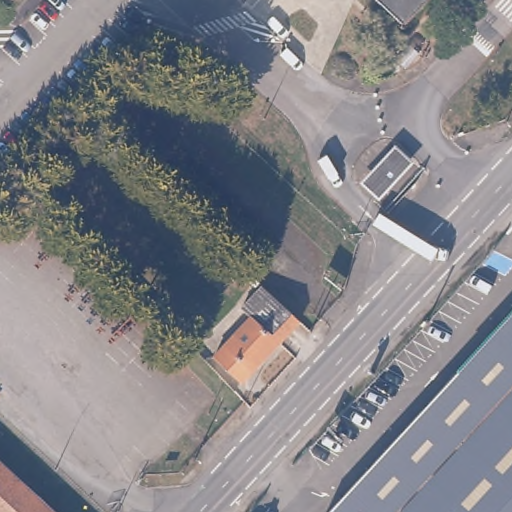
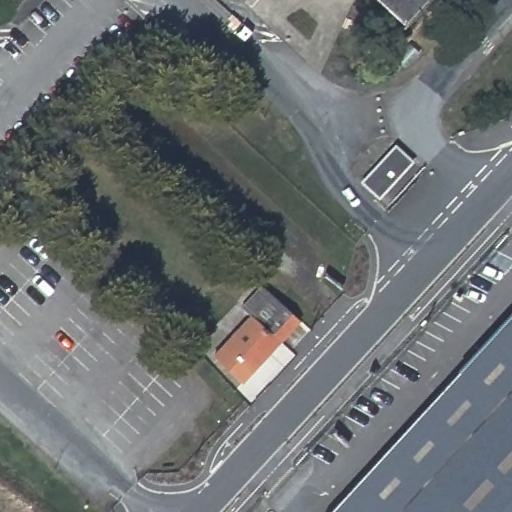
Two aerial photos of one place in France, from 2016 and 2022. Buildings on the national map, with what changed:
unchanged [(418,0),(400,19),(380,0),(418,0)]
unchanged [(406,166),(378,197),(366,186),(393,156),(406,166)]
unchanged [(302,312),(244,374),(218,349),(254,310),(244,301),(265,278),(302,312)]
unchanged [(512,313),(512,512),(330,512),(512,313)]
demolished [(41,512),(0,512),(0,466),(45,508),(41,512)]

